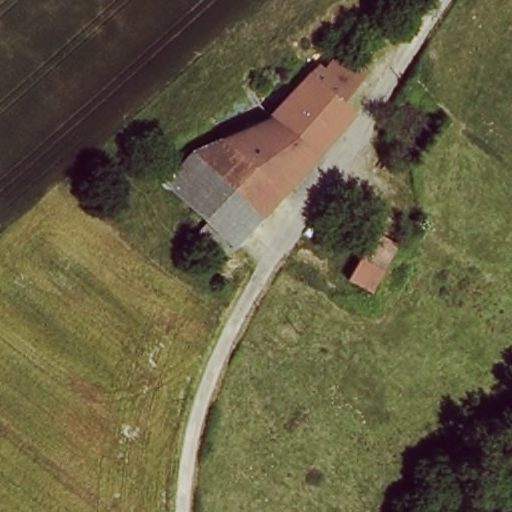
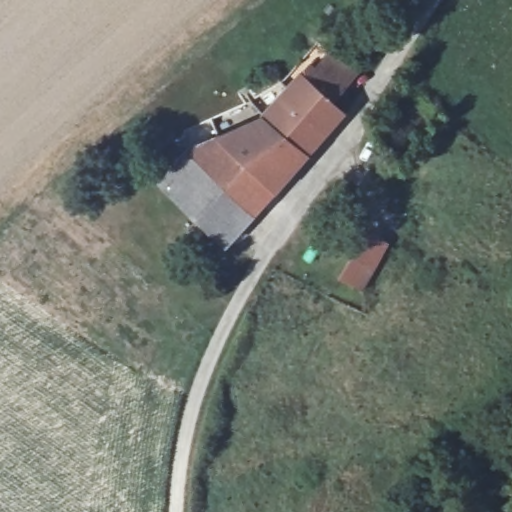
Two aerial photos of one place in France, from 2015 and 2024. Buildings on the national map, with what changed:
unchanged [(222,140),(268,115),(296,85),(303,81),(321,75),(336,60),(355,78),(330,104),(343,118),(275,195),(222,140)]
unchanged [(275,195),(227,250),(161,187),(189,157),(222,140),(275,195)]
unchanged [(390,244),(363,286),(342,274),(369,232),(390,244)]

